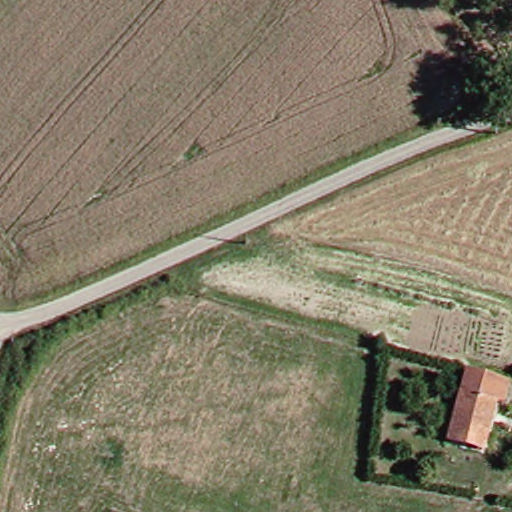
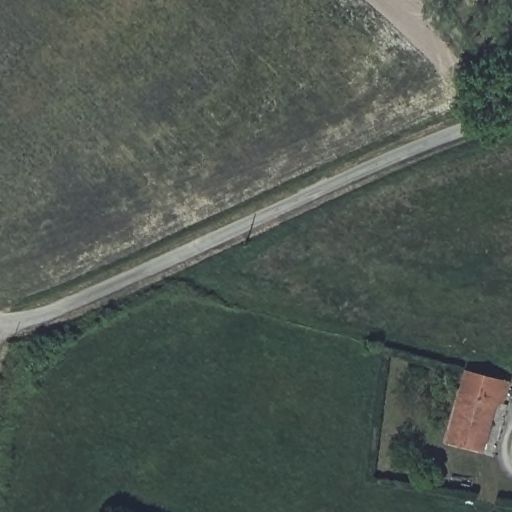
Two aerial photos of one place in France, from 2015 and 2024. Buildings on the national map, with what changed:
unchanged [(474,367),(512,380),(512,392),(510,404),(500,400),(486,449),(455,439),(471,377),(474,367)]

